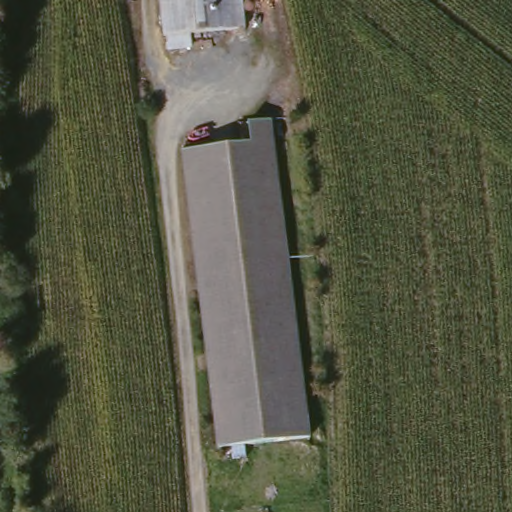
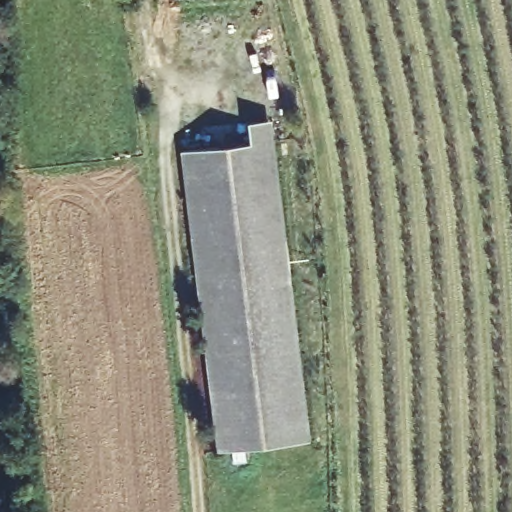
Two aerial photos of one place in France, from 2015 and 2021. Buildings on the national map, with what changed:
demolished [(183,34),(184,47),(164,49),(160,0),(238,0),(240,30),(183,34)]
unchanged [(213,451),(196,148),(255,145),(254,126),(279,125),(297,447),(213,451)]

